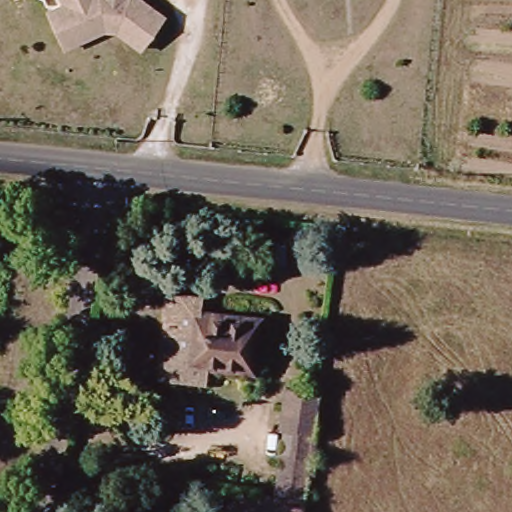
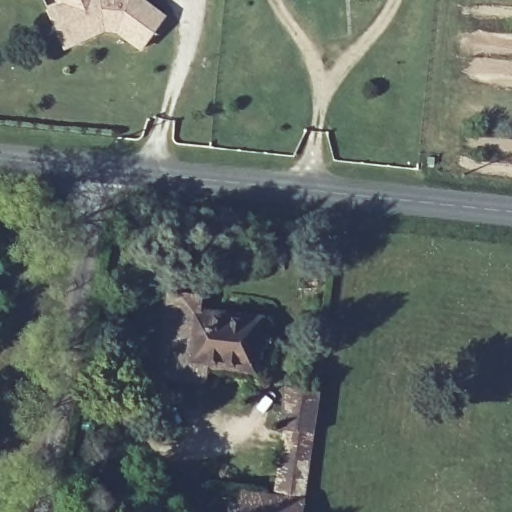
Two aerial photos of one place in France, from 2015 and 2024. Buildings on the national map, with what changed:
unchanged [(60,35),(50,13),(66,6),(63,0),(141,0),(166,18),(142,51),(119,33),(105,33),(82,42),(67,50),(60,35)]
unchanged [(161,320),(178,321),(180,292),(197,292),(197,312),(257,318),(252,370),(182,362),(182,375),(156,372),(161,320)]
unchanged [(273,501),(275,496),(285,430),(275,429),(280,391),(314,396),(299,505),(273,501)]
unchanged [(273,501),(299,505),(298,512),(231,512),(234,492),(275,496),(273,501)]

